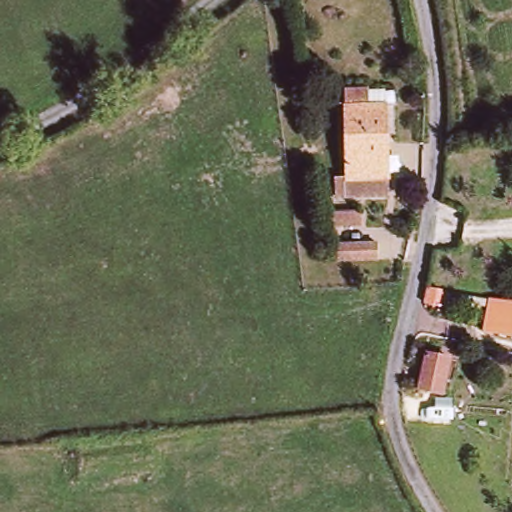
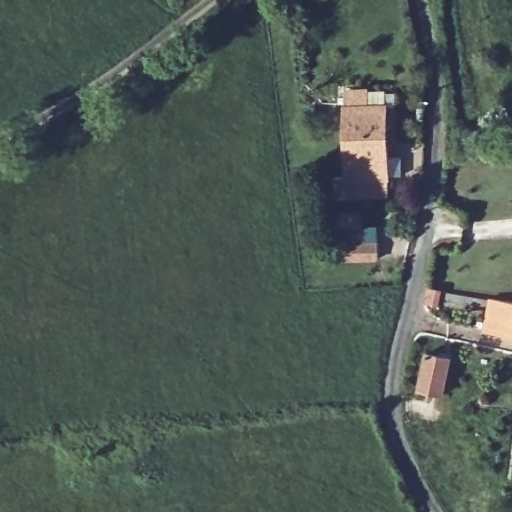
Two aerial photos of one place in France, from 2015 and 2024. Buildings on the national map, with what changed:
unchanged [(333,174),(345,174),(345,95),(345,88),(368,88),(368,98),(368,104),(386,104),(386,193),(334,193),(333,174)]
unchanged [(358,211),(358,224),(328,224),(328,211),(358,211)]
unchanged [(377,241),(377,257),(338,258),(338,242),(377,241)]
unchanged [(512,299),(512,333),(487,328),(491,303),(444,295),(442,303),(428,301),(431,286),(512,299)]
unchanged [(451,360),(440,393),(418,387),(429,354),(451,360)]

